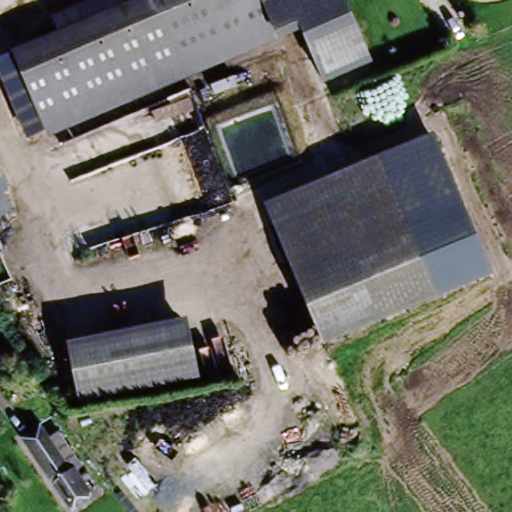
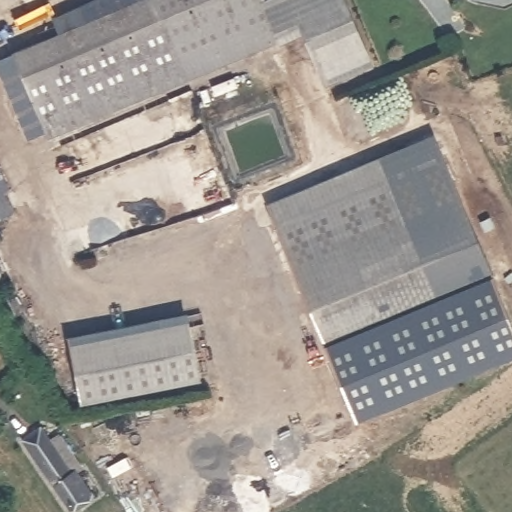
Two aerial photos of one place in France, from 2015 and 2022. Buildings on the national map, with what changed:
unchanged [(154,0),(157,0),(183,72),(43,127),(24,79),(74,59),(65,35),(154,0)]
unchanged [(295,0),(344,0),(376,75),(328,93),(301,26),(183,72),(157,0),(266,0),(270,10),(295,0)]
unchanged [(14,55),(65,35),(74,59),(24,79),(14,55)]
unchanged [(495,277),(323,349),(264,203),(434,134),(495,277)]
unchanged [(5,187),(1,189),(0,189),(0,177),(5,187)]
unchanged [(9,210),(0,213),(0,189),(1,189),(9,210)]
new [(512,321),(512,355),(356,420),(326,347),(495,277),(512,321)]
unchanged [(198,383),(78,406),(66,343),(187,319),(198,383)]
unchanged [(64,505),(17,437),(38,422),(46,434),(60,425),(83,459),(71,468),(85,491),(64,505)]

